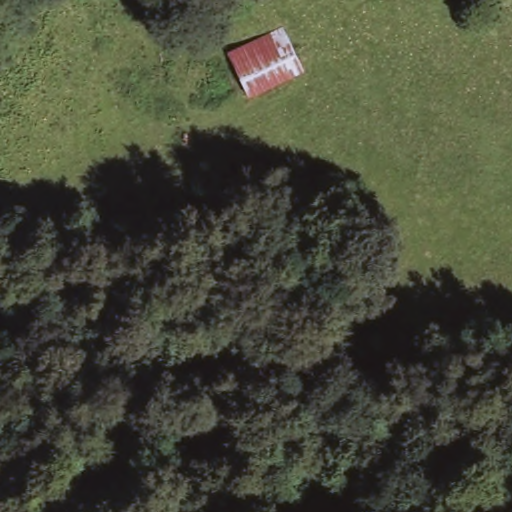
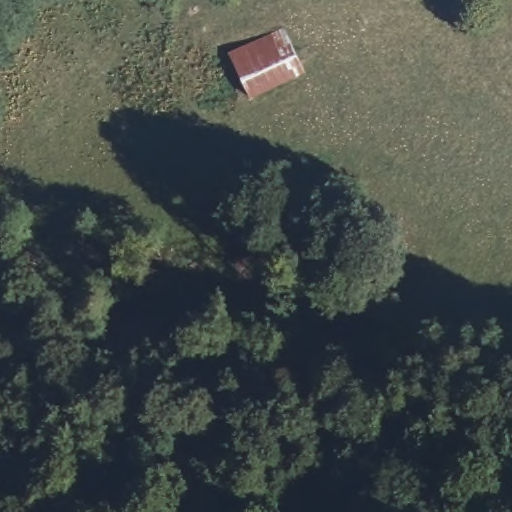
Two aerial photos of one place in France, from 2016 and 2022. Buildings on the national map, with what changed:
unchanged [(236,76),(226,52),(281,25),(304,72),(248,98),(236,76)]

